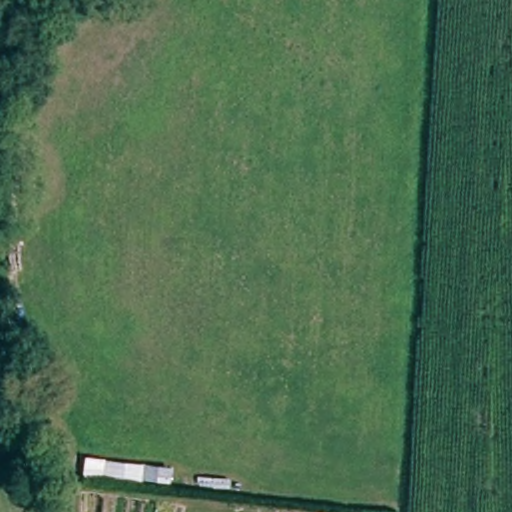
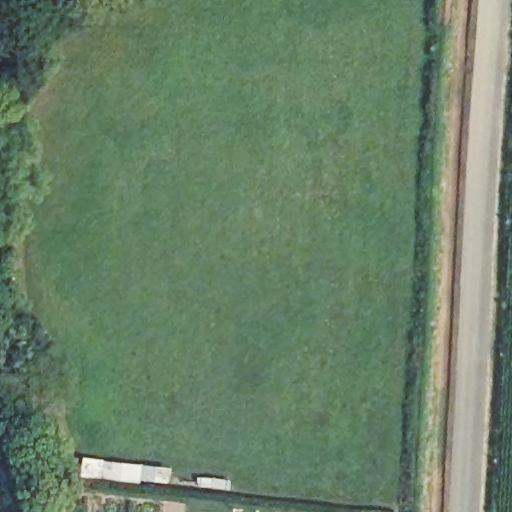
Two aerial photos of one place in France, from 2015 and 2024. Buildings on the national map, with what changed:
unchanged [(28,232),(28,265),(11,265),(11,232),(28,232)]

